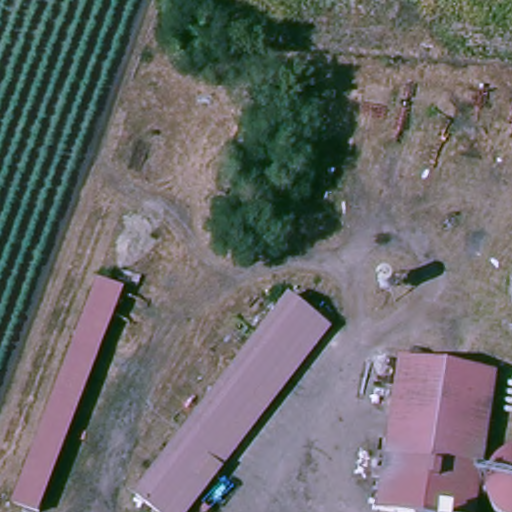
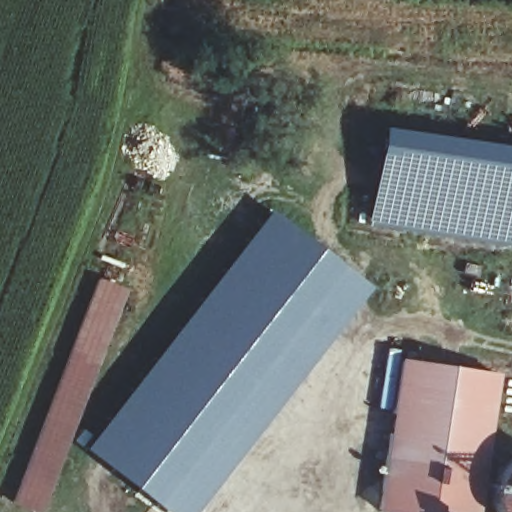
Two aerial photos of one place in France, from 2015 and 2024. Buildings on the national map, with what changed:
new [(367,220),(377,144),(381,128),(512,147),(512,243),(367,220)]
new [(200,479),(327,322),(290,290),(166,450),(135,489),(82,448),(269,209),(372,286),(196,512),(174,512),(187,495),(200,479)]
unchanged [(126,287),(42,504),(14,494),(100,276),(126,287)]
unchanged [(166,450),(290,290),(327,322),(200,479),(166,450)]
unchanged [(450,512),(381,503),(398,361),(495,372),(478,512),(450,512)]
unchanged [(505,452),(509,449),(512,447),(512,512),(504,512),(503,511),(500,507),(495,500),(493,492),(492,485),(495,468),(498,461),(501,457),(505,452)]
unchanged [(160,512),(135,489),(166,450),(200,479),(174,512),(160,512)]

